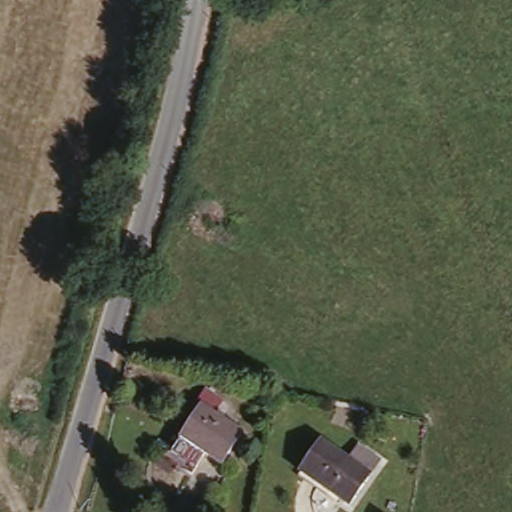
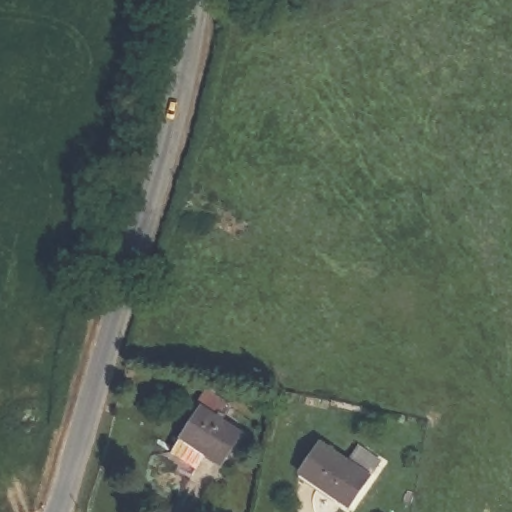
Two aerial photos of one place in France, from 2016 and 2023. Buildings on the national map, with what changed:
unchanged [(199,404),(243,430),(225,461),(203,454),(196,466),(169,449),(199,404)]
unchanged [(315,448),(342,464),(354,448),(381,465),(351,508),(297,477),(315,448)]

